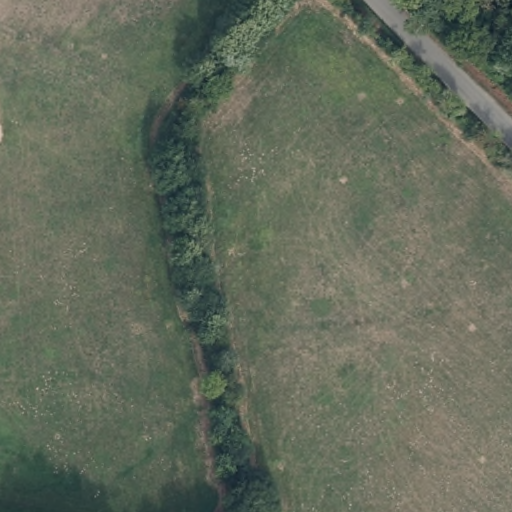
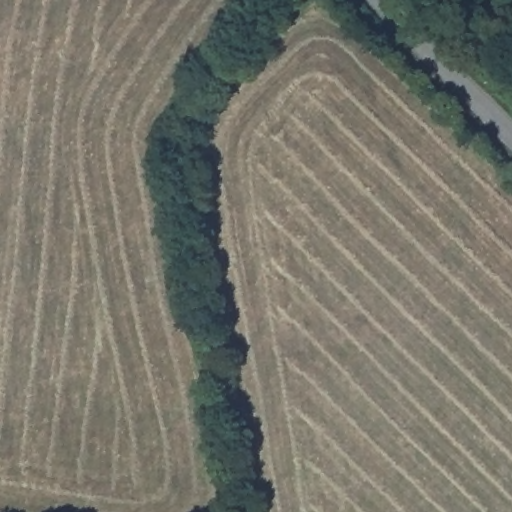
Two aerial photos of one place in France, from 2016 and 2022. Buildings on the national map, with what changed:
[]

